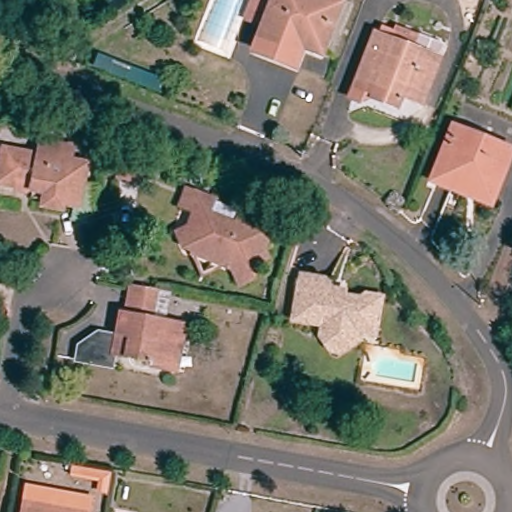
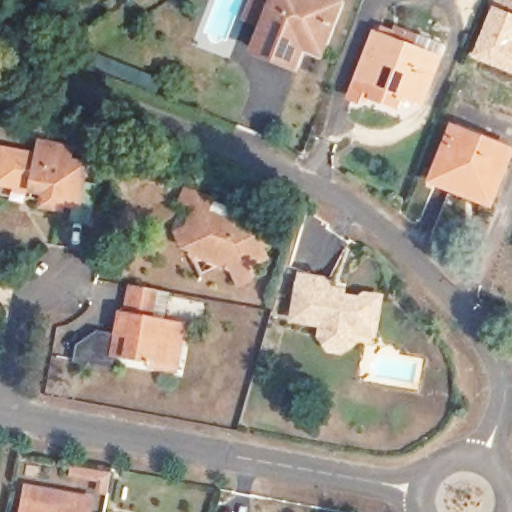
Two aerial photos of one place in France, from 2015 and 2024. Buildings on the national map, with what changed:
unchanged [(296,57),(259,45),(266,25),(274,0),(336,0),(325,34),(322,44),(303,37),(296,57)]
unchanged [(512,0),(512,8),(497,0),(512,0)]
new [(512,14),(512,75),(469,56),(491,5),(512,14)]
unchanged [(358,102),(348,99),(371,36),(402,48),(407,33),(434,43),(429,55),(416,89),(412,99),(395,94),(391,106),(363,96),(358,102)]
unchanged [(512,158),(501,190),(462,179),(459,187),(439,179),(456,136),(512,156),(512,158)]
unchanged [(42,195),(29,192),(32,177),(16,174),(15,180),(0,176),(0,158),(1,154),(2,146),(20,150),(38,154),(41,141),(71,147),(68,160),(80,162),(76,178),(96,182),(89,222),(70,217),(73,201),(57,198),(55,205),(40,203),(42,195)]
unchanged [(148,156),(145,175),(122,172),(125,152),(148,156)]
unchanged [(259,214),(261,227),(279,234),(269,253),(276,266),(263,270),(258,284),(241,284),(240,275),(196,257),(200,250),(187,246),(182,234),(195,229),(202,212),(187,207),(193,190),(218,199),(211,216),(234,225),(259,214)]
unchanged [(352,339),(349,351),(340,358),(328,356),(320,344),(322,332),(292,327),(300,281),(320,285),(326,295),(338,298),(338,303),(353,306),(361,300),(372,303),(369,327),(367,340),(352,339)]
unchanged [(147,364),(132,363),(128,375),(96,369),(99,352),(117,337),(135,340),(139,316),(145,316),(149,292),(172,297),(169,321),(200,327),(196,347),(192,372),(182,370),(147,364)]

